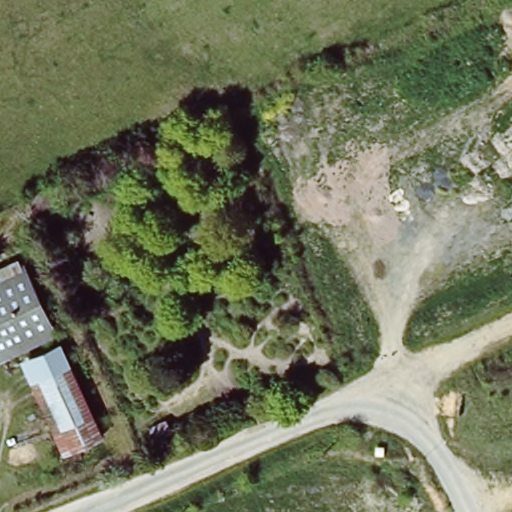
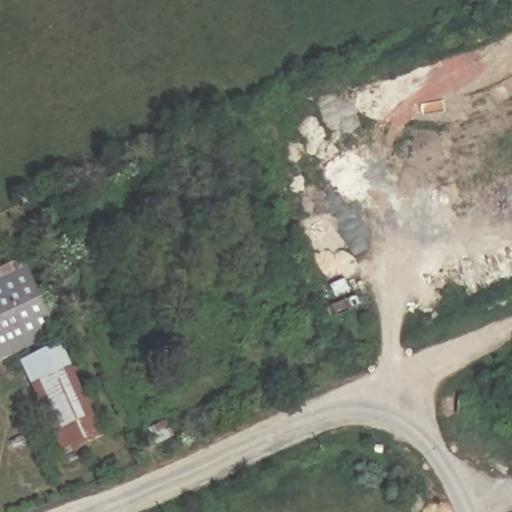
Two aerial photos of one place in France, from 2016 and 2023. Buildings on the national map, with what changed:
unchanged [(0,282),(24,270),(55,335),(0,362),(0,282)]
unchanged [(98,441),(69,454),(28,363),(57,350),(98,441)]

